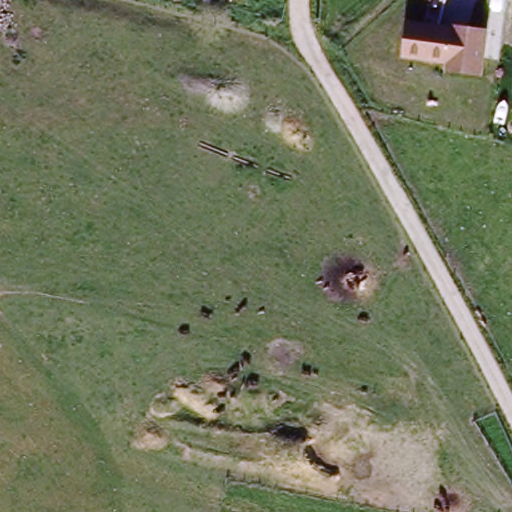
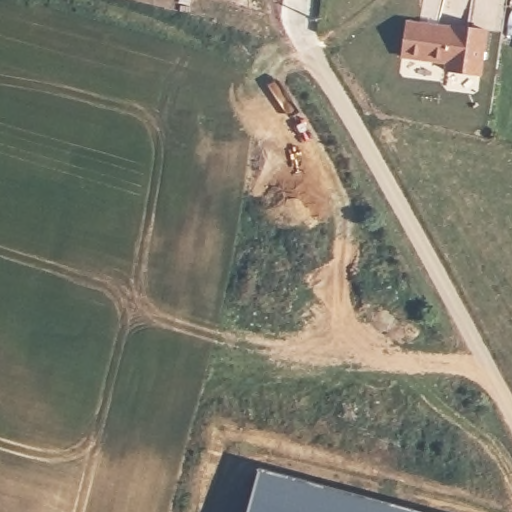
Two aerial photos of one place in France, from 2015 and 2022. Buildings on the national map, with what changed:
unchanged [(445,70),(446,63),(401,56),(406,21),(451,29),(451,25),(486,31),(479,75),(445,70)]
new [(249,512),(260,470),(422,512),(249,512)]

